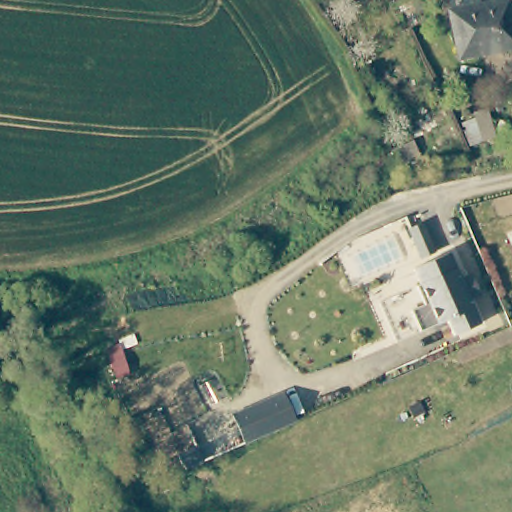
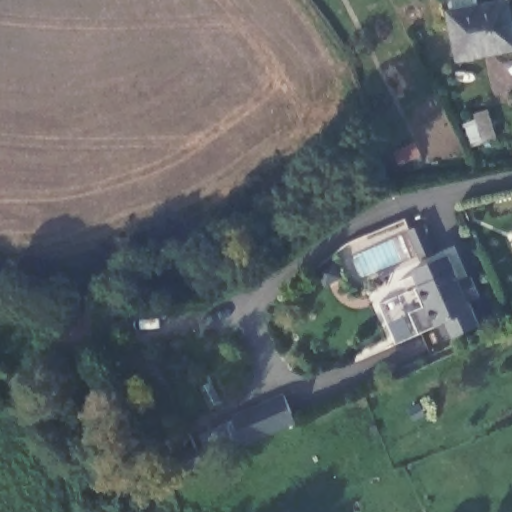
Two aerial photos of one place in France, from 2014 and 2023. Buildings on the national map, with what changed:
unchanged [(483,0),(503,0),(510,47),(452,55),(447,11),(483,8),(483,0)]
unchanged [(497,138),(471,147),(462,124),(476,119),(473,113),(487,110),(497,138)]
unchanged [(409,231),(423,225),(436,253),(421,260),(409,231)]
unchanged [(449,254),(461,280),(470,275),(480,299),(472,304),(481,324),(455,335),(448,321),(421,332),(412,312),(424,306),(417,288),(421,286),(415,269),(449,254)]
unchanged [(245,444),(233,417),(283,394),(297,421),(245,444)]

